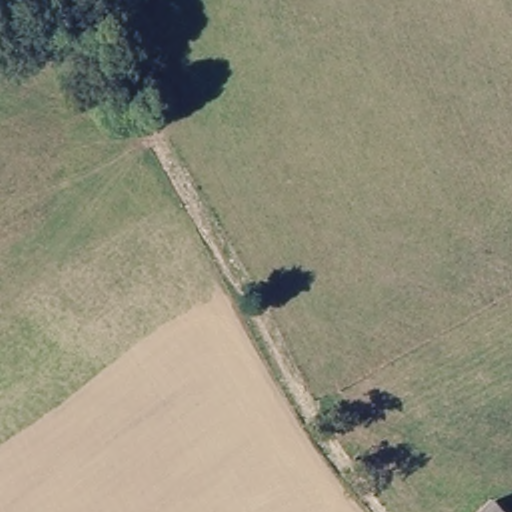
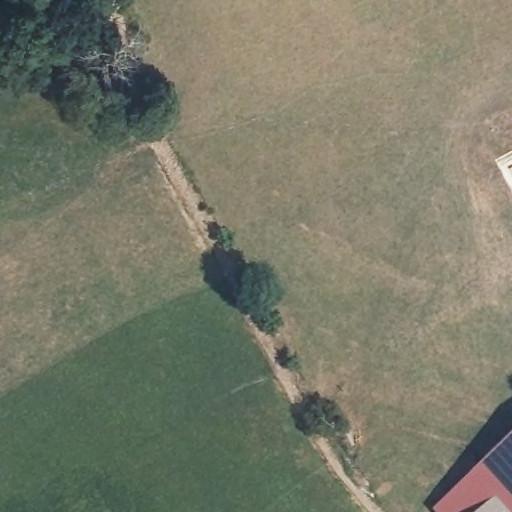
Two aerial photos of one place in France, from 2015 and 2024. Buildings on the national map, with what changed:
new [(512,437),(512,512),(436,512),(432,508),(512,437)]
demolished [(500,512),(473,512),(486,498),(500,512)]

